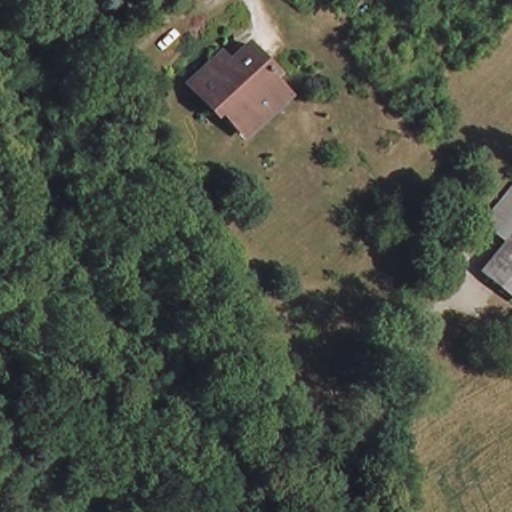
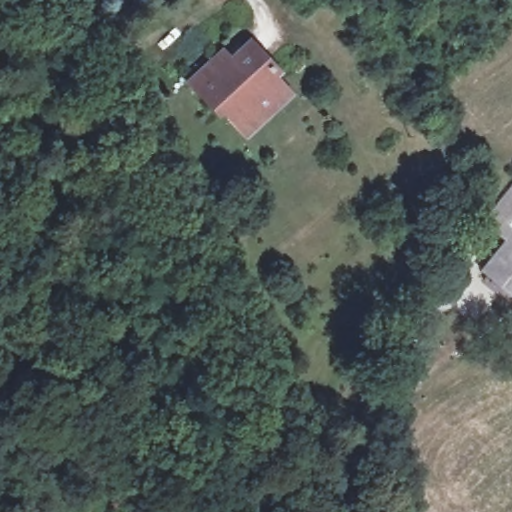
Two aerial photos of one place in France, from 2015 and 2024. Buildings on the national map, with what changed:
unchanged [(232,127),(218,110),(208,110),(189,90),(184,84),(218,51),(227,60),(241,46),(269,73),(269,82),(283,96),(268,110),(241,136),(232,127)]
unchanged [(508,285),(493,273),(512,247),(512,292),(506,287),(508,285)]

